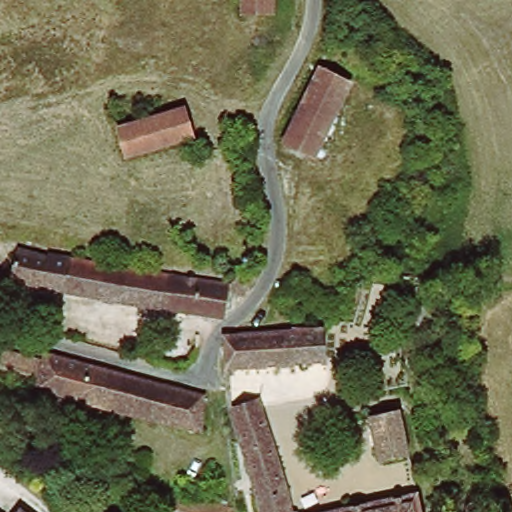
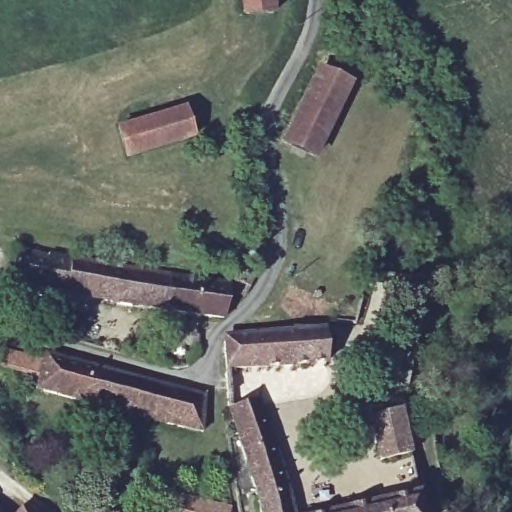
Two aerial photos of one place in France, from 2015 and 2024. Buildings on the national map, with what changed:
unchanged [(244,14),(245,0),(273,0),(273,15),(244,14)]
unchanged [(328,71),(357,86),(319,159),(290,144),(328,71)]
unchanged [(124,121),(189,120),(189,150),(125,150),(124,121)]
unchanged [(11,281),(18,244),(223,284),(230,264),(248,270),(229,307),(217,307),(213,321),(11,281)]
unchanged [(331,353),(324,358),(225,371),(227,342),(240,340),(249,334),(263,328),(276,328),(319,321),(325,325),(331,353)]
unchanged [(2,360),(5,345),(49,357),(51,348),(211,396),(197,433),(196,437),(41,385),(41,374),(2,360)]
unchanged [(295,453),(299,466),(286,473),(298,510),(293,512),(268,512),(260,483),(247,430),(243,406),(264,402),(273,426),(282,459),(295,453)]
unchanged [(381,463),(372,416),(404,410),(416,454),(381,463)]
unchanged [(155,504),(163,487),(223,512),(175,512),(155,504)]
unchanged [(353,505),(414,488),(420,512),(332,512),(353,505)]
unchanged [(29,509),(33,512),(27,512),(29,509)]
unchanged [(298,510),(298,512),(293,512),(298,510)]
unchanged [(0,511),(1,512),(0,512),(0,511)]

